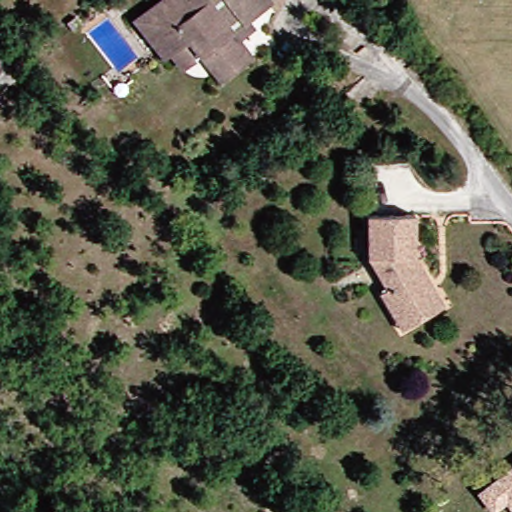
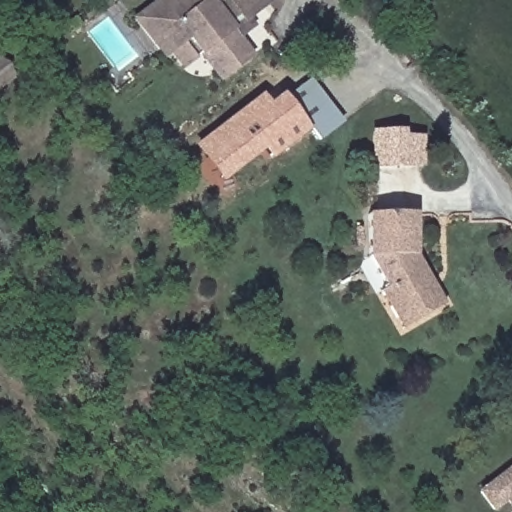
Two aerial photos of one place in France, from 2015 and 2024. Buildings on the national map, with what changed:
unchanged [(236,22),(232,26),(252,55),(221,76),(205,54),(190,65),(185,67),(175,53),(170,57),(150,31),(140,18),(165,0),(182,0),(213,0),(215,1),(224,14),(228,10),(236,22)]
unchanged [(247,20),(231,0),(272,0),(273,1),(247,20)]
new [(319,142),(312,131),(287,97),(308,80),(341,124),(319,142)]
new [(264,95),(270,102),(285,92),(312,131),(270,164),(262,155),(222,185),(194,149),(264,95)]
new [(403,139),(421,139),(421,170),(370,169),(370,132),(405,132),(403,139)]
unchanged [(400,321),(382,292),(390,287),(373,260),(373,215),(417,215),(417,260),(431,285),(445,309),(440,312),(420,324),(406,331),(400,321)]
unchanged [(491,510),(479,493),(512,468),(512,510),(505,500),(491,510)]

